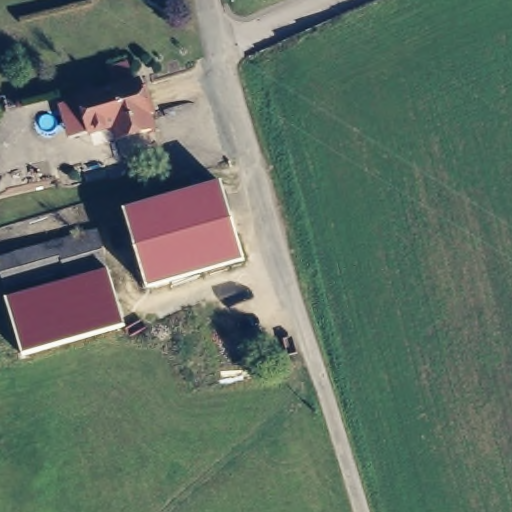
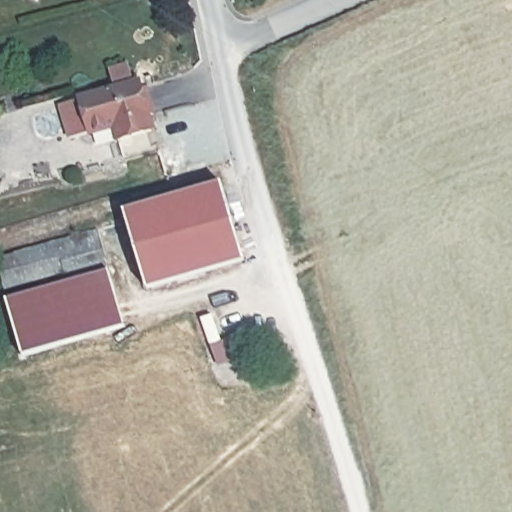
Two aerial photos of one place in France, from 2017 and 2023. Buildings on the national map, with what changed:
unchanged [(78,102),(108,92),(104,74),(120,70),(125,87),(134,84),(135,88),(142,86),(151,115),(143,116),(148,131),(115,141),(111,127),(87,134),(68,139),(59,108),(78,102)]
unchanged [(133,295),(110,222),(206,191),(228,265),(133,295)]
unchanged [(128,327),(24,355),(0,270),(0,257),(100,230),(128,327)]

